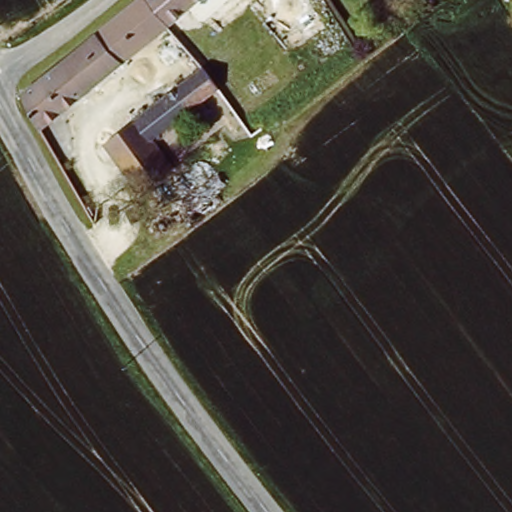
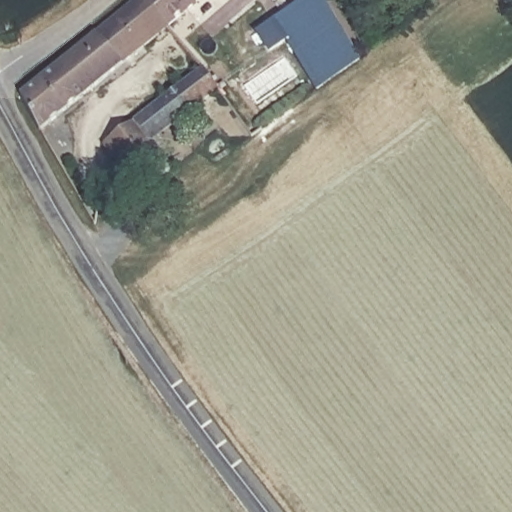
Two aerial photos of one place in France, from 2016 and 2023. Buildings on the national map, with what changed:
unchanged [(37,131),(17,95),(132,0),(197,0),(37,131)]
new [(360,57),(314,87),(273,19),(302,0),(324,0),(360,57)]
unchanged [(153,140),(172,165),(141,190),(118,161),(111,164),(97,145),(199,64),(217,88),(153,140)]

